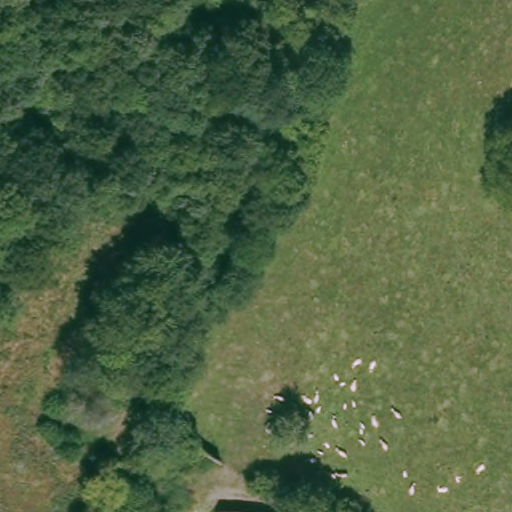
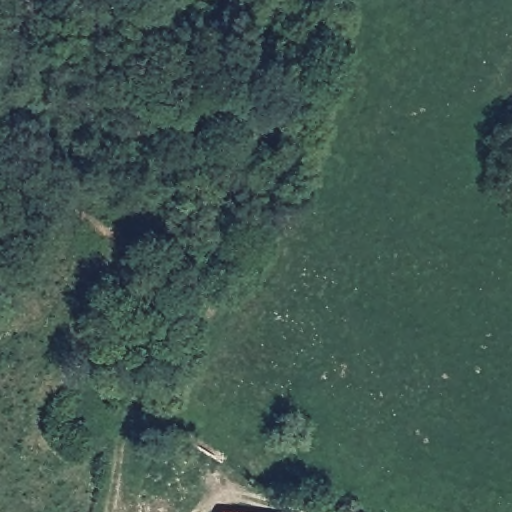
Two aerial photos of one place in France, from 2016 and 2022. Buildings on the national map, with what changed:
unchanged [(217,465),(215,482),(187,465),(187,457),(174,455),(176,439),(217,465)]
unchanged [(230,512),(215,512),(215,510),(230,512)]

